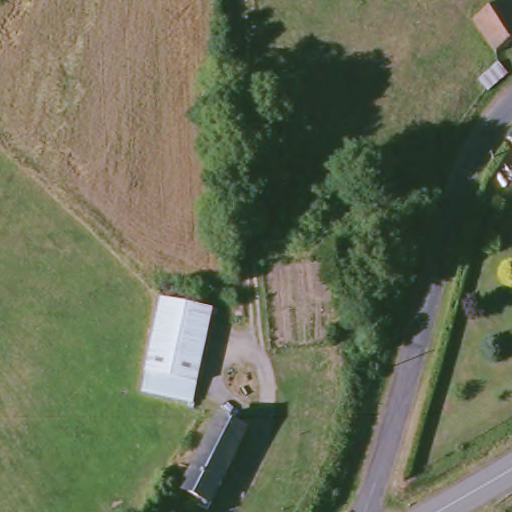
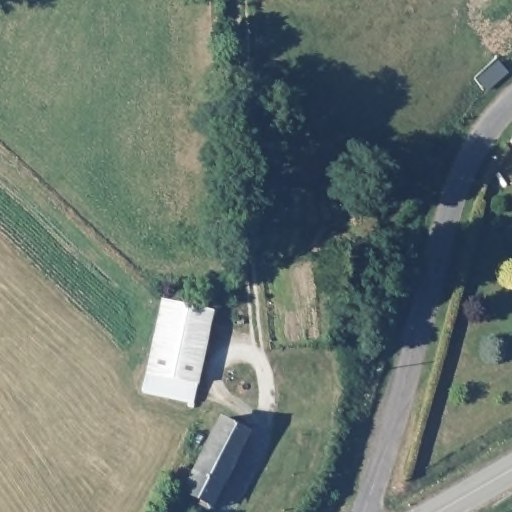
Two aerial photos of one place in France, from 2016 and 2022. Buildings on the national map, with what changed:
unchanged [(471,22),(505,0),(512,0),(512,44),(497,55),(471,22)]
unchanged [(221,307),(204,383),(200,401),(145,396),(151,367),(166,299),(221,307)]
unchanged [(199,498),(202,493),(181,480),(188,465),(197,469),(201,463),(228,413),(255,428),(228,480),(209,505),(199,498)]

